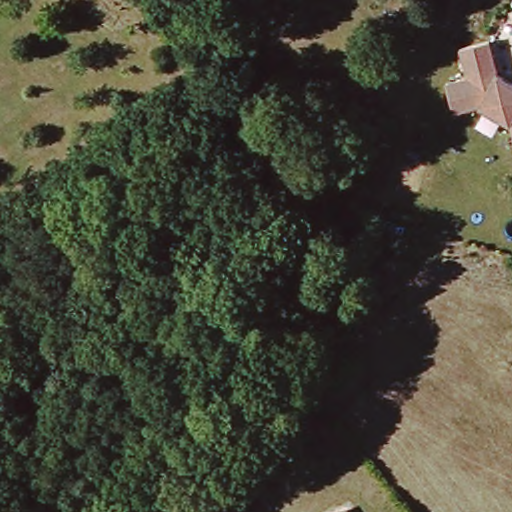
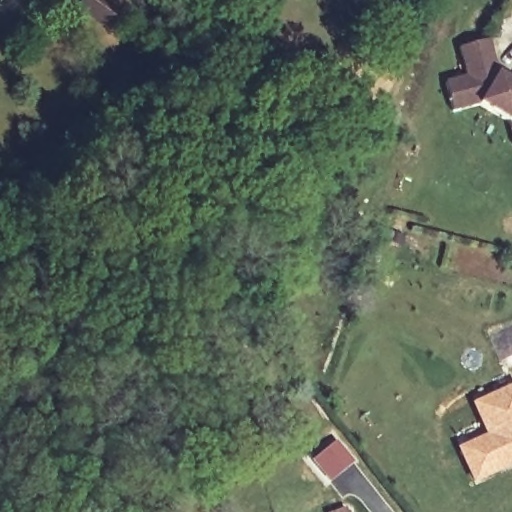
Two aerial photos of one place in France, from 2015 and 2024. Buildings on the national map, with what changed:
unchanged [(497,127),(467,109),(438,116),(432,87),(453,81),(445,53),(474,45),(483,79),(512,96),(512,151),(503,154),(497,127)]
unchanged [(425,143),(421,159),(424,160),(413,199),(400,194),(412,158),(399,151),(400,139),(425,143)]
new [(501,360),(488,334),(512,323),(512,355),(501,360)]
new [(471,402),(512,384),(512,467),(474,485),(456,448),(485,434),(471,402)]

